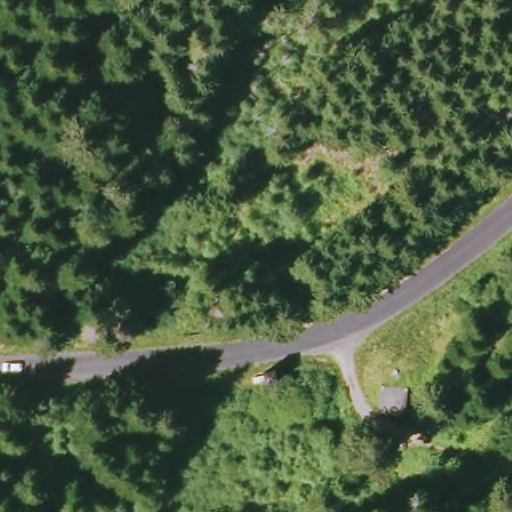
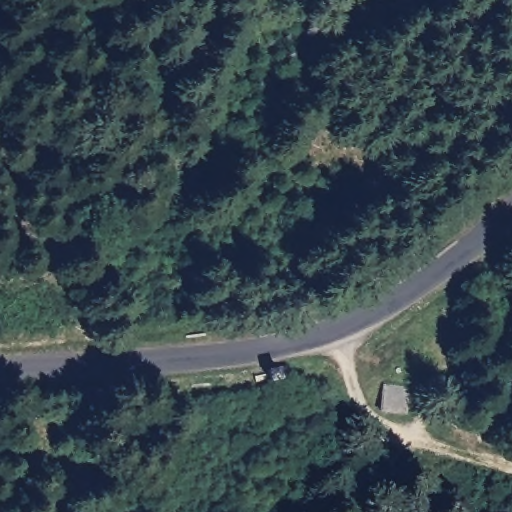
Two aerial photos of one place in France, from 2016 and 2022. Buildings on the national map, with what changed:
unchanged [(293,380),(272,383),(271,380),(269,370),(291,364),(293,380)]

